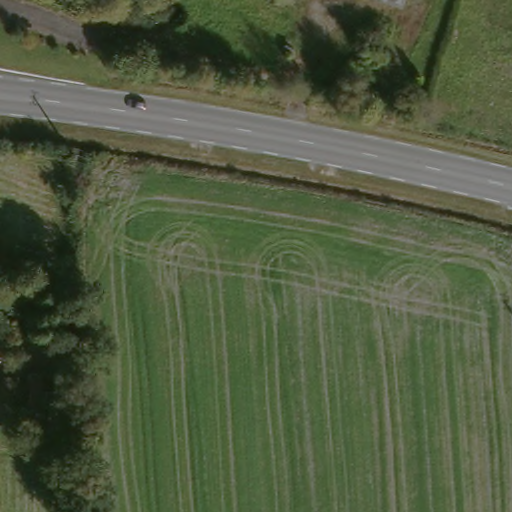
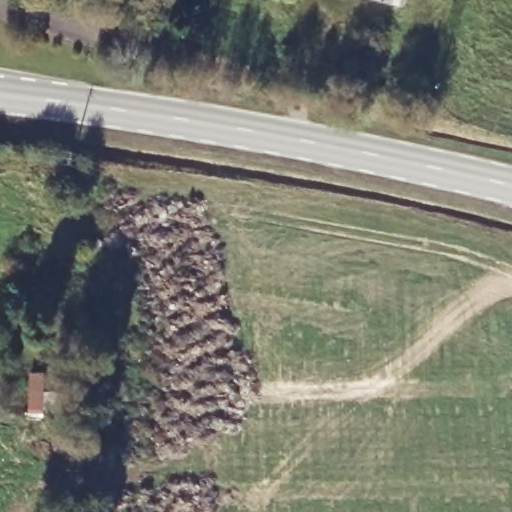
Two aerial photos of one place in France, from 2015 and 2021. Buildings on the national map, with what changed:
unchanged [(297,1),(294,0),(297,0),(297,1)]
unchanged [(399,5),(382,0),(401,0),(399,5)]
unchanged [(42,375),(41,394),(54,394),(54,416),(27,417),(27,375),(42,375)]

